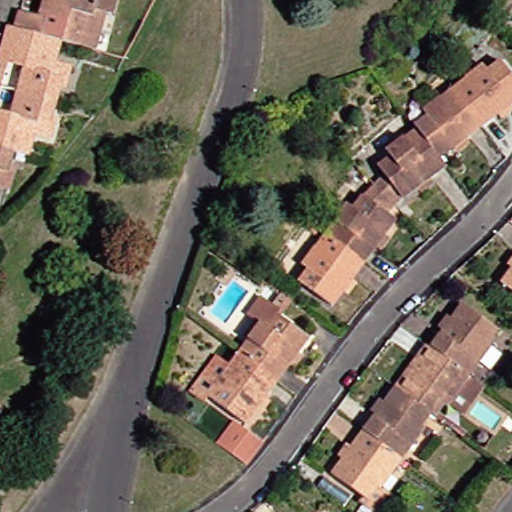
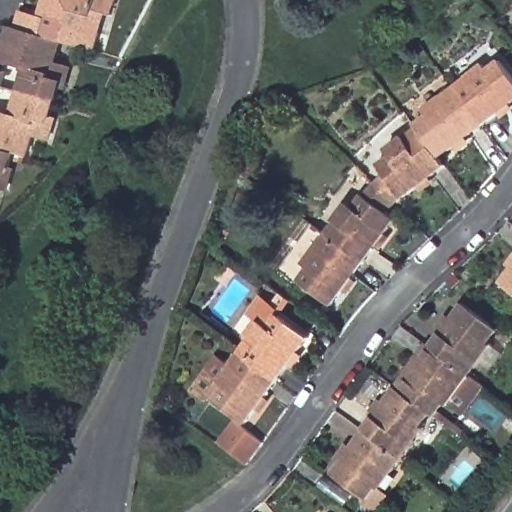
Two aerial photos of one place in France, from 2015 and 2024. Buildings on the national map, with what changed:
unchanged [(37,12),(40,0),(112,0),(108,14),(94,10),(88,34),(95,36),(91,51),(60,43),(66,21),(37,12)]
unchanged [(56,88),(52,102),(14,91),(20,68),(0,62),(0,41),(4,27),(12,29),(15,13),(41,20),(36,36),(57,42),(51,64),(66,69),(61,89),(56,88)]
unchanged [(444,88),(474,64),(479,71),(491,61),(512,89),(512,97),(473,126),(444,88)]
unchanged [(1,72),(0,76),(0,72),(1,72)]
unchanged [(431,158),(407,128),(405,126),(418,117),(414,110),(432,97),(444,88),(473,126),(431,158)]
unchanged [(47,139),(30,135),(24,157),(9,153),(0,151),(0,115),(7,117),(14,91),(52,102),(48,119),(52,120),(47,139)]
unchanged [(394,199),(393,197),(385,205),(366,185),(375,174),(369,166),(381,157),(377,151),(407,128),(431,158),(437,166),(394,199)]
unchanged [(5,190),(0,189),(0,151),(9,153),(5,169),(10,171),(5,190)]
unchanged [(376,213),(386,220),(354,263),(316,235),(326,222),(325,222),(338,204),(345,209),(354,196),(355,197),(366,185),(385,205),(376,213)]
unchanged [(323,306),(290,282),(299,270),(293,265),(306,247),(307,248),(316,235),(354,263),(323,306)]
unchanged [(512,263),(512,294),(497,283),(512,263)]
unchanged [(236,272),(228,285),(217,279),(227,266),(236,272)]
unchanged [(245,341),(244,340),(257,323),(246,315),(258,299),(270,309),(268,311),(273,315),(304,339),(273,382),(235,354),(245,341)]
unchanged [(420,347),(453,304),(488,330),(478,343),(482,345),(460,375),(420,347)]
unchanged [(438,406),(435,404),(425,417),(421,414),(387,389),(420,347),(460,375),(438,406)]
unchanged [(208,400),(203,397),(199,401),(188,392),(201,374),(213,382),(226,365),(226,366),(235,354),(273,382),(242,424),(208,400)]
unchanged [(412,427),(414,429),(392,459),(354,432),(386,388),(387,389),(421,414),(412,427)]
unchanged [(258,443),(242,466),(212,444),(228,422),(258,443)]
unchanged [(359,512),(340,498),(345,490),(323,475),(354,432),(392,459),(369,491),(375,495),(363,512),(359,512)]

